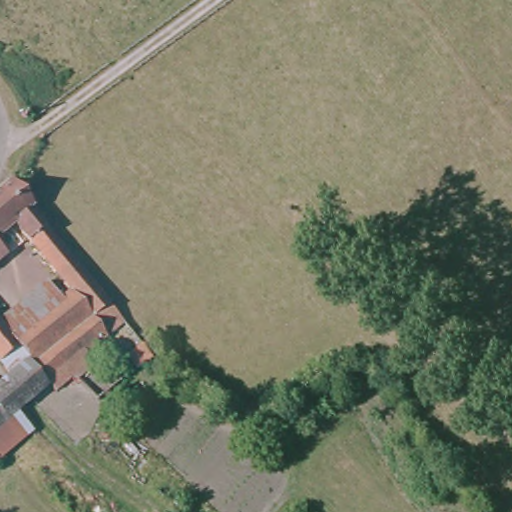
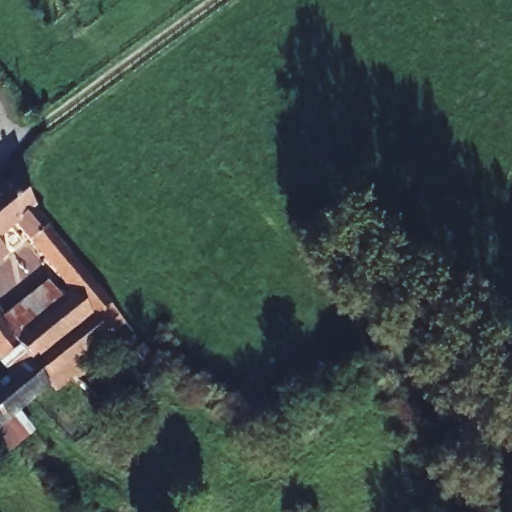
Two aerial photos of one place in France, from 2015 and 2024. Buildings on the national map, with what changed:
unchanged [(52,387),(51,385),(42,375),(36,367),(0,325),(0,323),(47,285),(62,303),(72,295),(17,229),(0,242),(0,198),(16,185),(37,211),(36,212),(127,326),(89,356),(101,372),(86,386),(81,379),(60,396),(52,387)]
unchanged [(0,267),(0,249),(9,260),(0,267)]
unchanged [(34,369),(15,385),(11,380),(0,367),(0,325),(36,367),(34,369)]
unchanged [(154,358),(139,371),(130,358),(145,346),(154,358)]
unchanged [(15,385),(34,369),(50,388),(2,429),(0,430),(0,389),(11,380),(15,385)]

